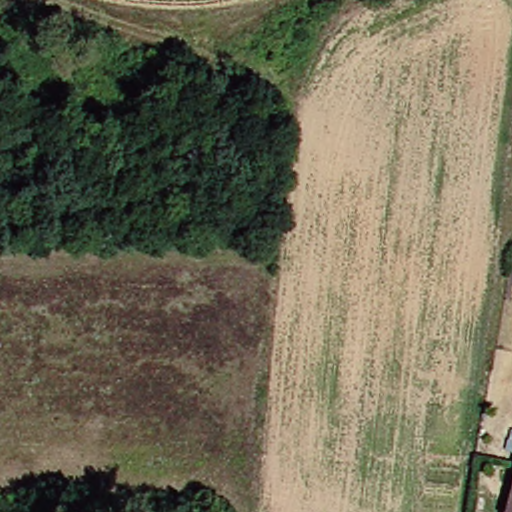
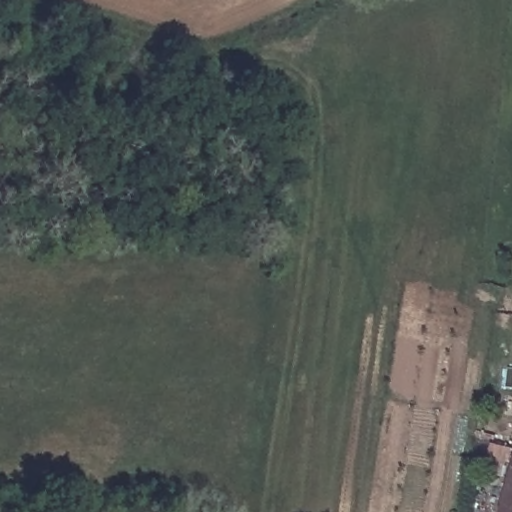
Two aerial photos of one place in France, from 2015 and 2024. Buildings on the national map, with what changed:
unchanged [(510,430),(512,431),(512,453),(505,451),(510,430)]
unchanged [(505,512),(512,487),(512,512),(505,512)]

